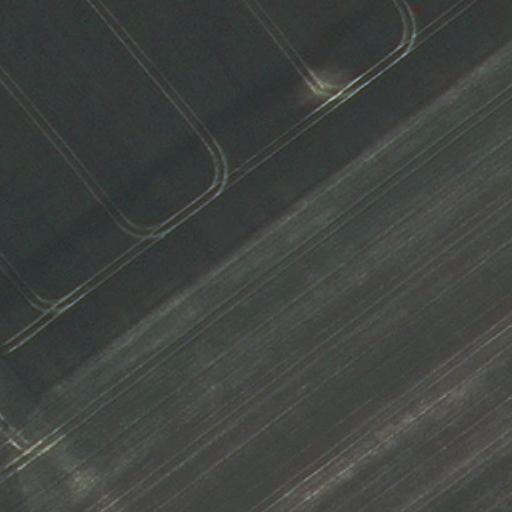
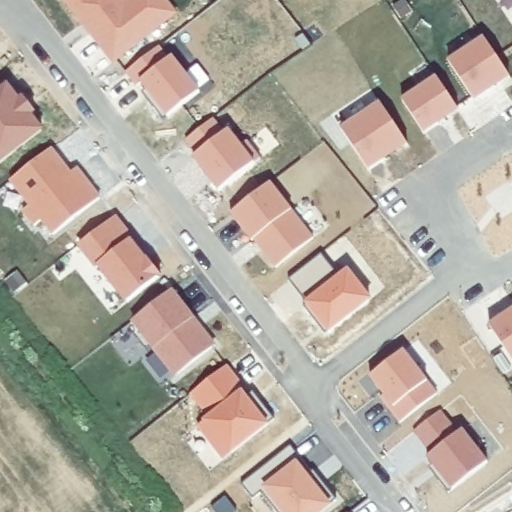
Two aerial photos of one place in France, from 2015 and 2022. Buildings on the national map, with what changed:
new [(64,0),(121,0),(127,7),(136,0),(164,0),(178,17),(115,66),(92,37),(85,27),(64,0)]
new [(511,81),(509,79),(490,92),(491,94),(476,104),(451,65),(486,42),(512,81),(511,81)]
new [(161,51),(171,64),(174,61),(201,96),(165,125),(151,106),(154,102),(143,87),(138,90),(128,77),(161,51)]
new [(5,83),(18,97),(21,95),(34,110),(30,113),(42,128),(0,159),(0,81),(3,85),(5,83)]
new [(459,115),(458,112),(439,125),(441,127),(426,137),(404,104),(439,81),(461,114),(459,115)]
new [(409,149),(407,147),(384,162),(386,164),(371,174),(343,132),(382,107),(409,148),(409,149)]
new [(196,162),(199,159),(188,144),(216,122),(226,137),(231,134),(243,150),(249,145),(263,162),(221,195),(214,185),(206,176),(196,162)]
new [(72,177),(65,183),(78,172),(102,202),(55,239),(44,225),(37,231),(25,215),(32,210),(13,185),(53,153),(68,171),(72,177)]
new [(273,187),(316,242),(278,272),(264,254),(268,251),(259,241),(254,245),(233,218),(273,187)]
new [(150,263),(163,280),(129,307),(101,270),(99,272),(81,249),(117,221),(134,244),(150,263)]
new [(320,329),(306,310),(309,307),(291,283),(324,257),(342,282),(350,275),(372,303),(331,336),(328,338),(320,329)]
new [(191,326),(195,323),(202,332),(216,350),(178,380),(135,325),(173,295),(195,322),(191,326)]
new [(491,329),(506,319),(508,321),(512,318),(512,360),(491,329)]
new [(372,381),(406,355),(439,398),(403,427),(392,413),(383,402),(386,399),(372,381)]
new [(228,370),(248,395),(244,397),(253,408),(261,403),(277,423),(226,463),(200,431),(211,422),(193,397),(228,370)]
new [(261,403),(253,408),(248,402),(255,396),(261,403)]
new [(442,415),(460,437),(464,433),(490,466),(451,497),(436,478),(440,476),(429,461),(434,458),(416,436),(442,415)]
new [(317,475),(326,485),(341,503),(330,512),(275,512),(264,497),(255,503),(243,489),(293,450),(315,476),(317,475)]

